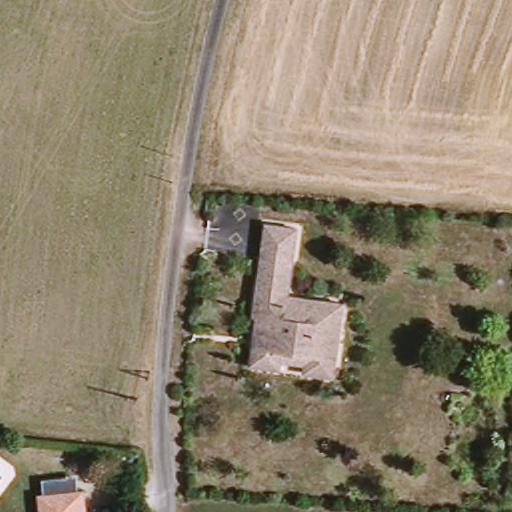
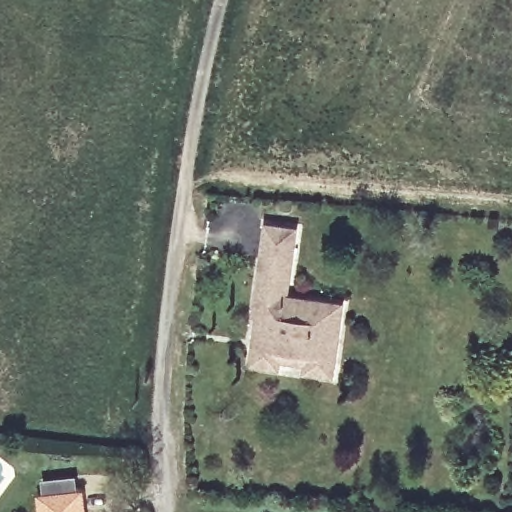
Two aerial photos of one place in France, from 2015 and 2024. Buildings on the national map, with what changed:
unchanged [(281,376),(249,372),(251,351),(256,352),(260,324),(253,324),(266,229),(297,233),(288,302),(343,309),(333,383),(302,379),(303,369),(282,366),(281,376)]
unchanged [(40,497),(83,492),(85,512),(41,512),(40,497)]

